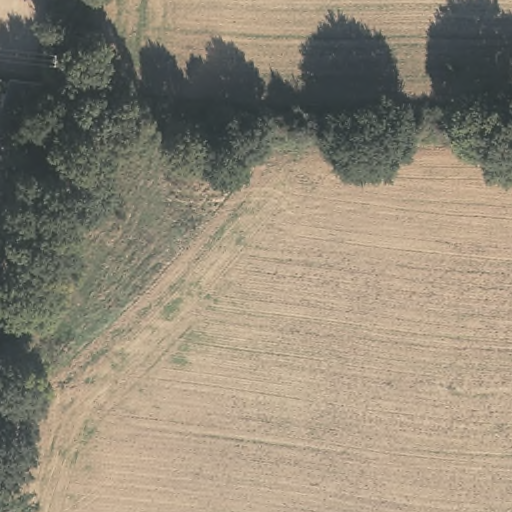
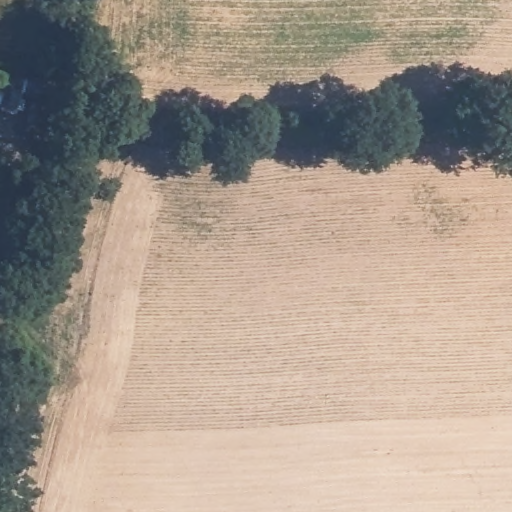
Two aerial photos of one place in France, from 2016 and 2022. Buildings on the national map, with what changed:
unchanged [(32,72),(28,91),(10,86),(5,105),(0,104),(0,68),(14,69),(32,72)]
unchanged [(37,369),(35,382),(17,378),(19,366),(37,369)]

